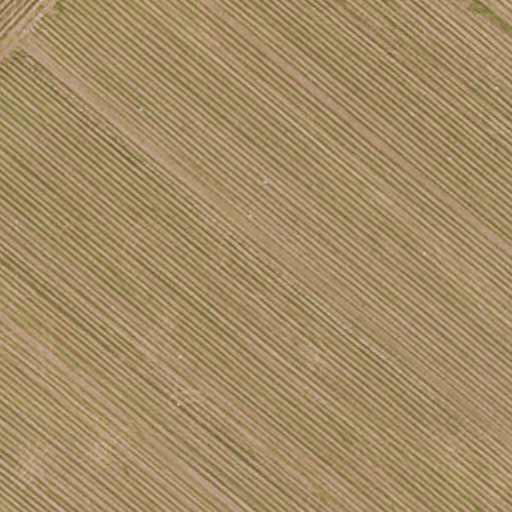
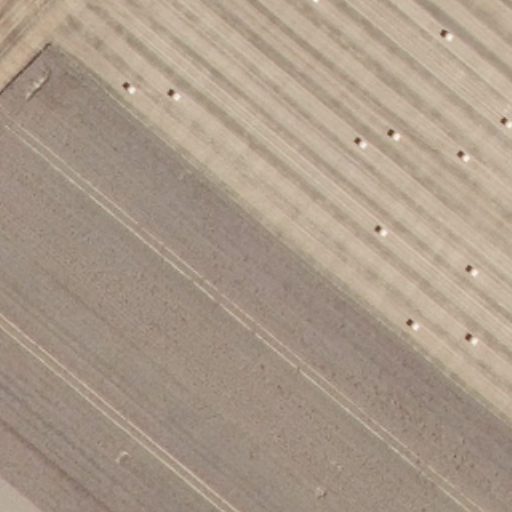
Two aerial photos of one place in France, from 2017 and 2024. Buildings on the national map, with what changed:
[]

